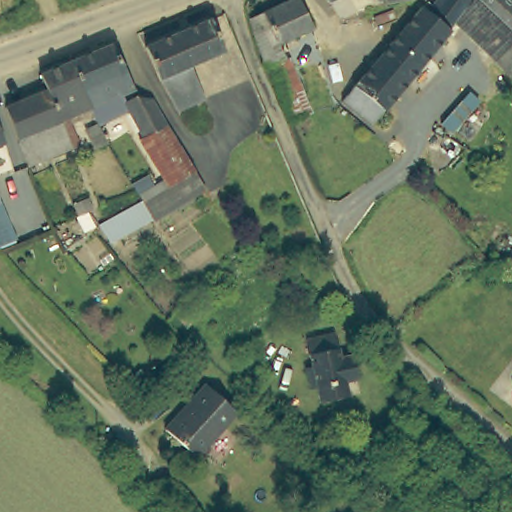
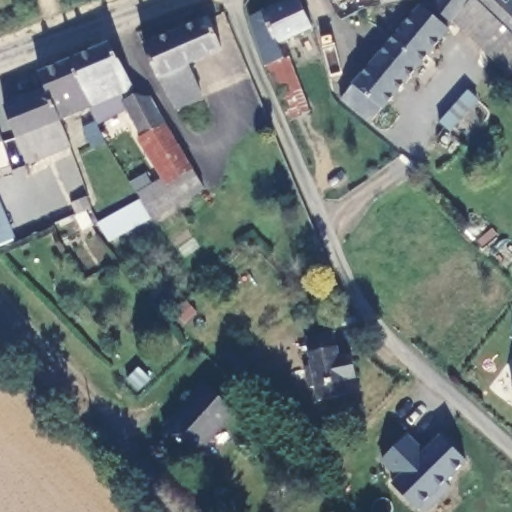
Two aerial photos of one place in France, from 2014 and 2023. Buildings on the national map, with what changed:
unchanged [(298,0),(306,23),(271,38),(277,51),(262,56),(259,58),(242,10),(270,0),(298,0)]
unchanged [(447,28),(429,12),(440,0),(495,0),(512,16),(512,79),(490,63),(447,28)]
unchanged [(417,11),(444,34),(412,70),(384,49),(417,11)]
unchanged [(172,108),(171,105),(165,93),(164,94),(141,44),(203,17),(218,48),(188,62),(191,68),(196,79),(192,80),(198,95),(199,98),(172,108)]
unchanged [(106,43),(126,88),(84,104),(67,59),(106,43)]
unchanged [(303,103),(282,110),(262,56),(277,51),(282,49),(303,103)]
unchanged [(412,70),(373,116),(371,115),(361,126),(335,103),(384,49),(412,70)]
unchanged [(83,105),(56,116),(65,142),(22,159),(1,103),(44,85),(37,71),(67,59),(84,104),(83,105)]
unchanged [(425,115),(445,90),(451,82),(475,100),(469,108),(448,134),(425,115)]
unchanged [(164,120),(192,165),(190,166),(187,169),(185,169),(138,199),(128,181),(154,165),(135,135),(139,133),(120,98),(129,93),(146,97),(148,100),(161,121),(164,120)]
unchanged [(185,169),(187,169),(190,166),(196,178),(201,186),(150,218),(138,199),(185,169)]
unchanged [(7,225),(0,228),(0,204),(7,225)]
unchanged [(347,392),(320,398),(317,383),(309,384),(304,364),(312,362),(306,335),(333,329),(339,351),(350,348),(352,356),(355,373),(344,375),(347,392)]
demolished [(512,377),(512,386),(507,383),(512,377)]
unchanged [(159,427),(201,383),(233,414),(190,458),(159,427)]
new [(424,451),(440,435),(467,461),(446,484),(452,488),(428,512),(425,512),(419,508),(391,484),(398,477),(381,461),(408,435),(424,451)]

